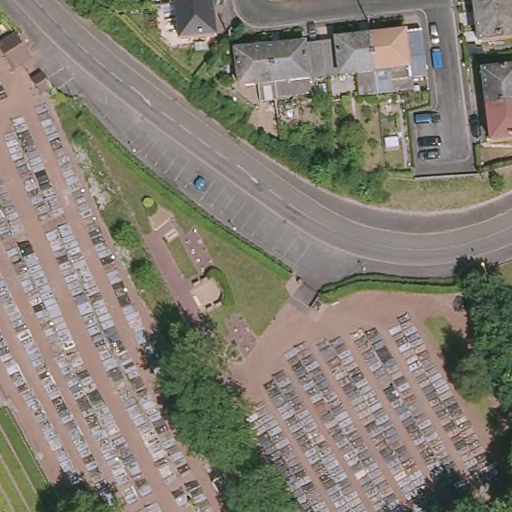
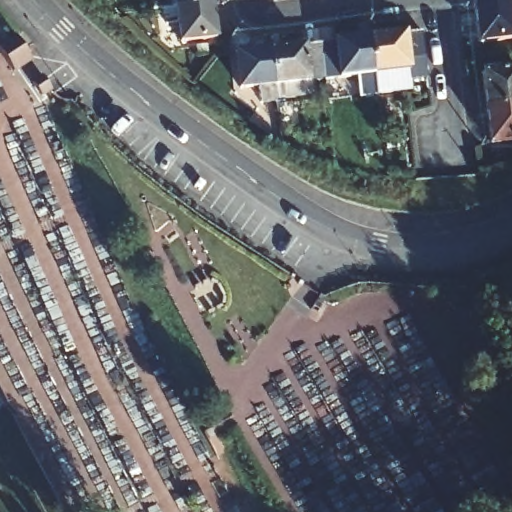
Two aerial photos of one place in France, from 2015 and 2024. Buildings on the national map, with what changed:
unchanged [(213,4),(178,8),(177,0),(212,0),(213,4)]
unchanged [(474,6),(473,0),(508,0),(508,2),(474,6)]
unchanged [(512,38),(479,43),(474,6),(508,2),(512,38)]
unchanged [(216,37),(181,41),(178,8),(213,4),(216,37)]
unchanged [(369,36),(419,30),(425,76),(389,80),(389,91),(376,92),(369,36)]
unchanged [(360,94),(358,75),(323,78),(318,43),(369,36),(376,92),(360,94)]
unchanged [(0,52),(0,46),(18,37),(37,62),(16,76),(0,52)]
unchanged [(323,78),(324,92),(274,99),(268,49),(318,43),(323,78)]
unchanged [(258,101),(256,87),(236,89),(231,53),(268,49),(274,99),(258,101)]
unchanged [(486,109),(482,74),(512,70),(512,105),(486,109)]
unchanged [(512,105),(512,141),(490,144),(486,109),(512,105)]

